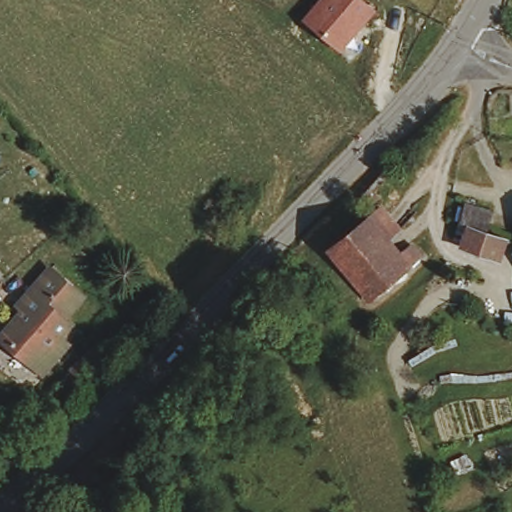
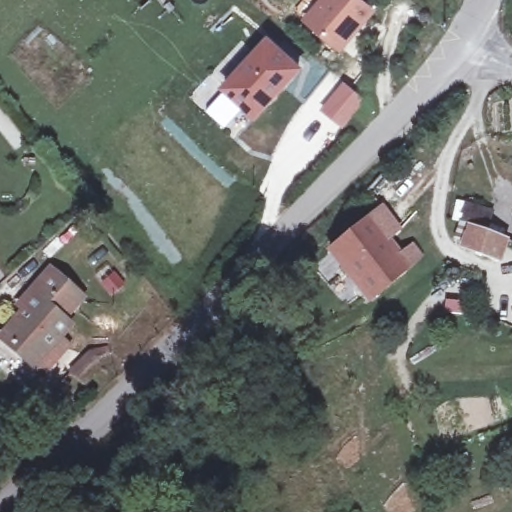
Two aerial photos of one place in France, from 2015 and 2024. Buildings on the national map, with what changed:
unchanged [(319,0),(360,0),(374,12),(342,53),(303,20),(319,0)]
new [(268,36),(305,69),(256,122),(220,89),(268,36)]
new [(344,82),(367,101),(344,130),(320,111),(344,82)]
unchanged [(502,261),(470,249),(474,237),(463,229),(465,222),(472,202),(498,212),(490,233),(510,242),(502,261)]
unchanged [(402,245),(415,257),(375,298),(329,252),(362,218),(372,207),(391,225),(379,236),(394,252),(402,245)]
unchanged [(50,375),(40,367),(8,338),(29,313),(22,308),(54,271),(85,297),(54,334),(62,340),(53,351),(63,360),(50,375)]

